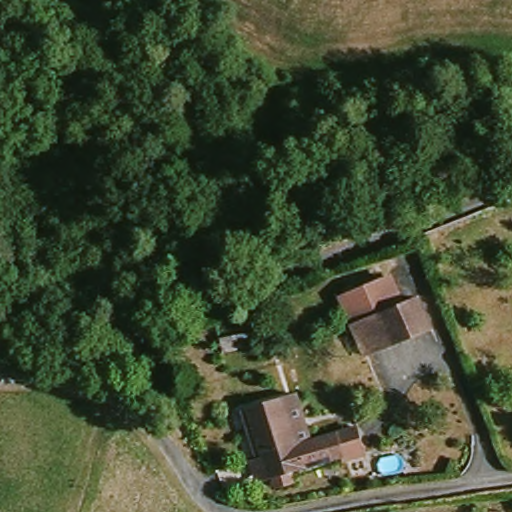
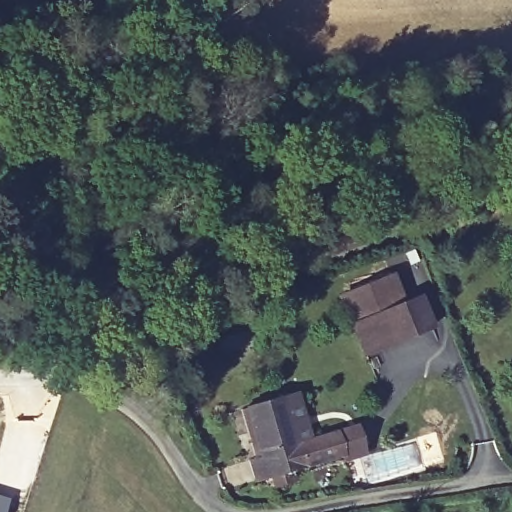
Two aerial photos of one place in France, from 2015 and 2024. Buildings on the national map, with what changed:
unchanged [(335,296),(393,270),(408,302),(349,326),(335,296)]
unchanged [(434,328),(363,361),(349,326),(408,302),(421,297),(434,328)]
unchanged [(253,332),(255,345),(225,351),(222,338),(253,332)]
unchanged [(255,466),(262,464),(249,415),(254,413),(290,405),(302,448),(316,445),(342,438),(348,461),(273,483),(261,487),(255,466)]
new [(6,512),(0,512),(0,494),(10,497),(6,512)]

